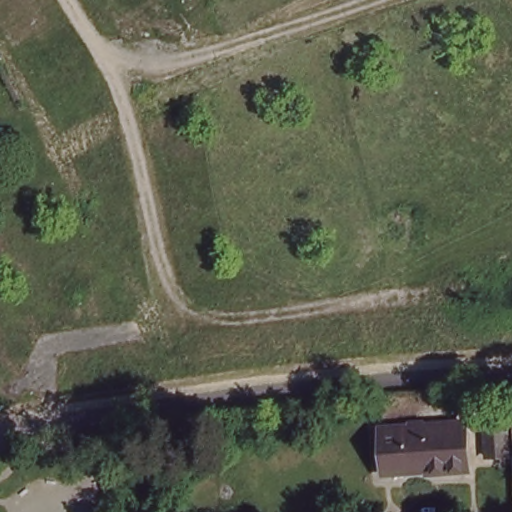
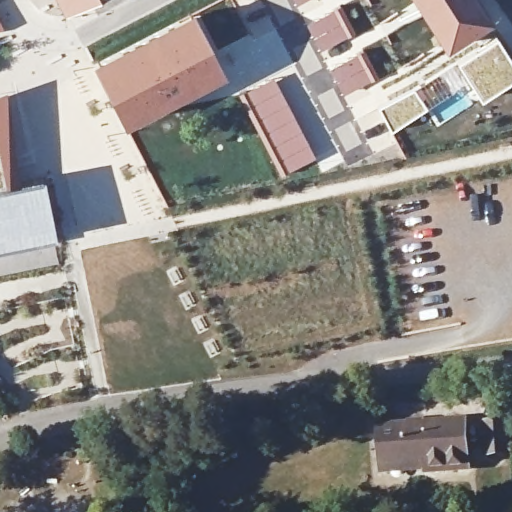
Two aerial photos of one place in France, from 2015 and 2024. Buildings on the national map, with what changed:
new [(61,10),(55,0),(80,0),(61,10)]
new [(299,7),(294,0),(310,0),(299,7)]
new [(494,22),(445,51),(427,26),(411,0),(479,0),(494,22)]
new [(337,6),(352,34),(321,52),(305,25),(337,6)]
new [(101,57),(119,50),(192,9),(226,73),(123,125),(91,63),(101,57)]
new [(3,25),(0,27),(0,20),(3,25)]
new [(512,59),(512,79),(477,100),(465,83),(453,59),(495,33),(512,59)]
new [(360,50),(376,76),(343,95),(328,69),(360,50)]
new [(453,59),(465,83),(428,108),(413,85),(453,59)]
new [(273,75),(316,156),(286,172),(241,91),(273,75)]
new [(413,85),(428,108),(391,131),(384,119),(362,132),(354,119),(413,85)]
new [(11,94),(21,189),(49,184),(61,243),(0,255),(0,99),(11,94)]
unchanged [(474,409),(483,408),(492,406),(493,416),(485,417),(475,418),(474,409)]
unchanged [(472,469),(469,436),(488,434),(491,433),(493,467),(472,469)]
unchanged [(454,482),(411,487),(410,479),(369,482),(366,444),(450,435),(454,482)]

